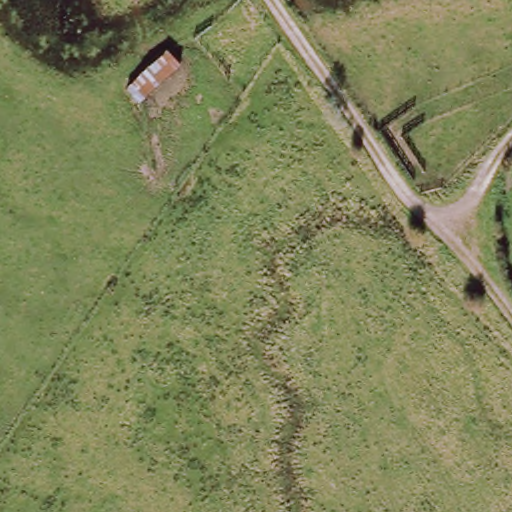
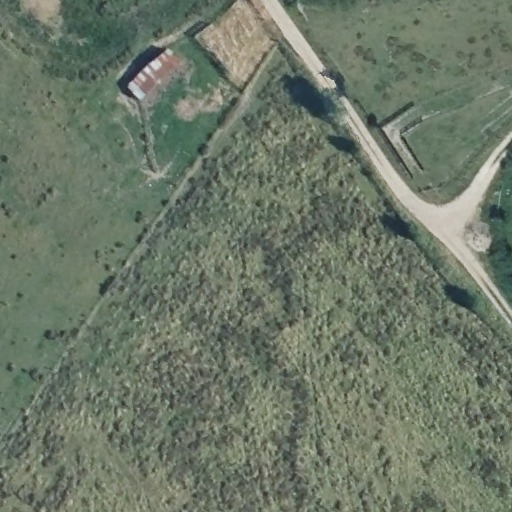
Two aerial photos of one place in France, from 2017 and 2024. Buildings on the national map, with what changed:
unchanged [(126,90),(165,51),(183,69),(143,106),(126,90)]

